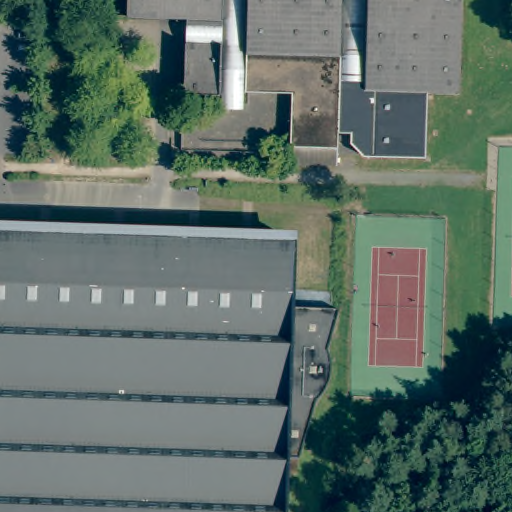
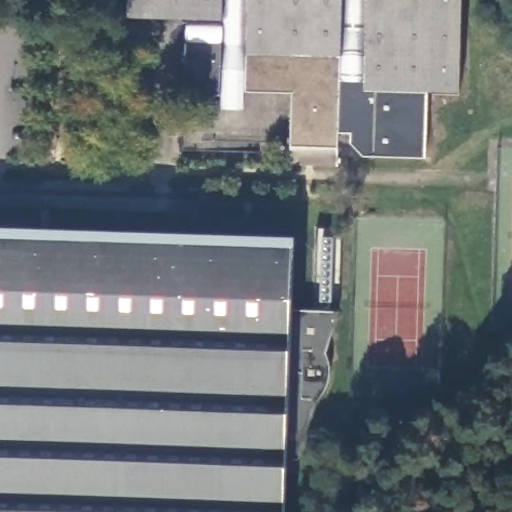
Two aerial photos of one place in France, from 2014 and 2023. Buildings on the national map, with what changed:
unchanged [(427,93),(425,160),(362,159),(348,146),(349,136),(338,136),(338,168),(290,167),(292,95),(246,94),(246,91),(244,91),(243,109),(223,109),(223,96),(221,96),(220,98),(184,97),(186,46),(188,46),(190,22),(129,21),(130,0),(463,0),(460,94),(427,93)]
unchanged [(284,242),(282,309),(328,311),(325,319),(317,351),(319,357),(319,368),(320,376),(317,385),(313,392),(309,396),(306,399),(290,454),(276,453),(274,512),(0,512),(0,233),(284,242)]

